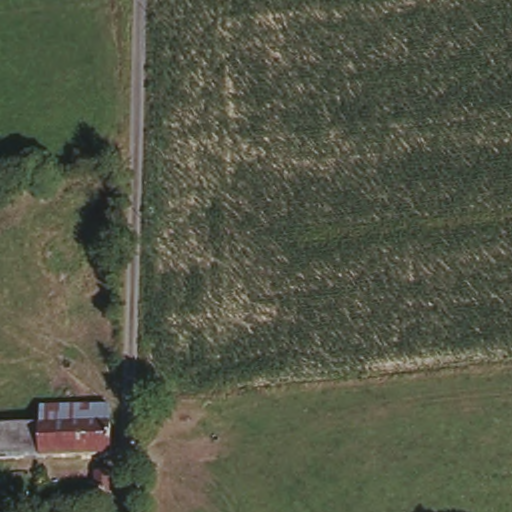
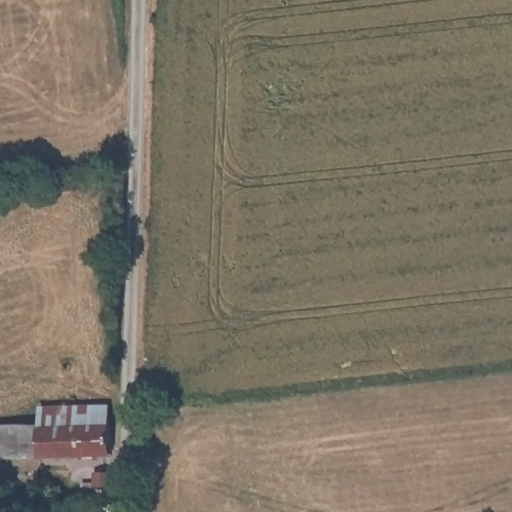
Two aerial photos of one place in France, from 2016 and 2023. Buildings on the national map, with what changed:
unchanged [(113,456),(45,459),(44,430),(43,411),(112,408),(113,456)]
unchanged [(0,461),(0,430),(44,430),(45,459),(0,461)]

